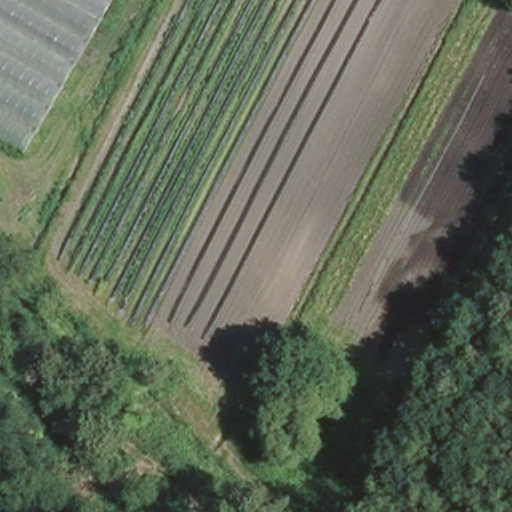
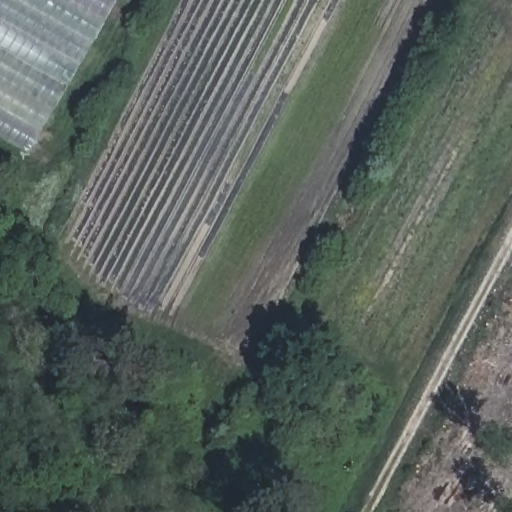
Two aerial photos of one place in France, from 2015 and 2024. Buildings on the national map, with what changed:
unchanged [(0,139),(0,0),(117,0),(29,156),(0,139)]

